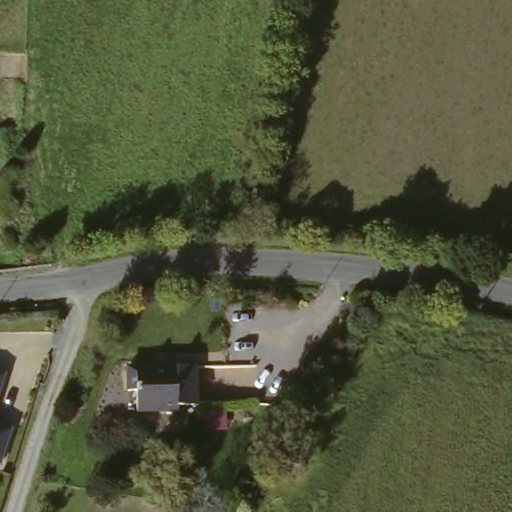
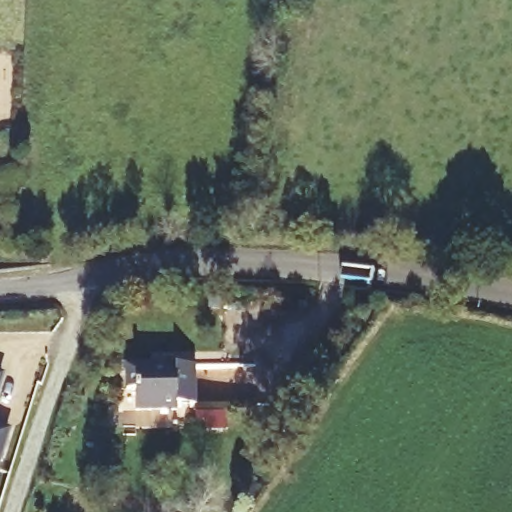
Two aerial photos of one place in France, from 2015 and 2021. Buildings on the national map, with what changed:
unchanged [(195,368),(198,406),(181,408),(181,411),(140,415),(138,396),(129,397),(128,373),(195,368)]
unchanged [(0,402),(0,376),(8,378),(0,402)]
unchanged [(2,467),(0,467),(0,429),(13,433),(2,467)]

